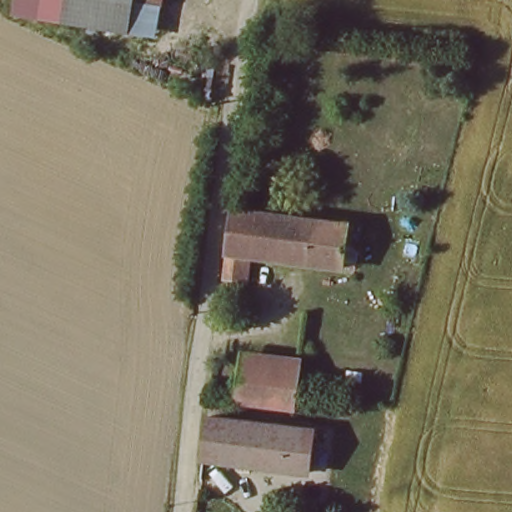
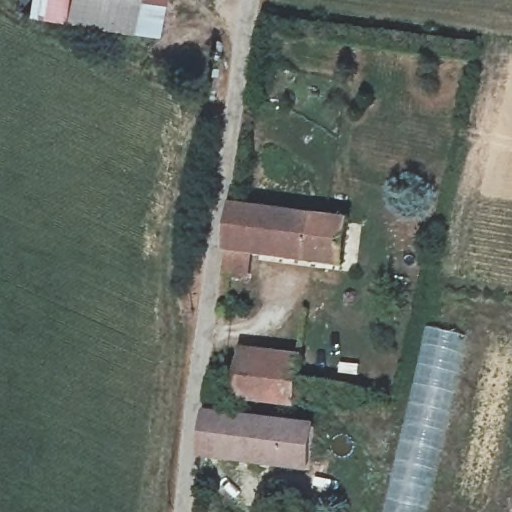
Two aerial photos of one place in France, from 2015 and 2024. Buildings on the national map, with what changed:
unchanged [(13,15),(15,0),(166,0),(159,36),(13,15)]
unchanged [(236,214),(237,206),(347,218),(342,262),(244,254),(240,280),(227,278),(236,214)]
new [(430,512),(386,512),(428,326),(469,337),(430,512)]
unchanged [(233,392),(239,353),(308,361),(305,385),(303,400),(233,392)]
unchanged [(213,415),(314,426),(311,467),(220,456),(218,485),(204,485),(206,468),(213,415)]

